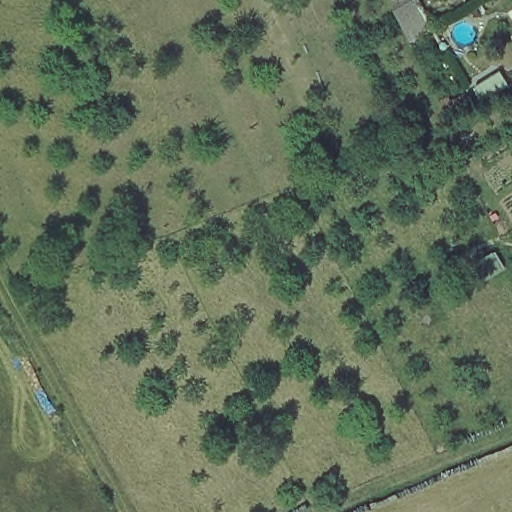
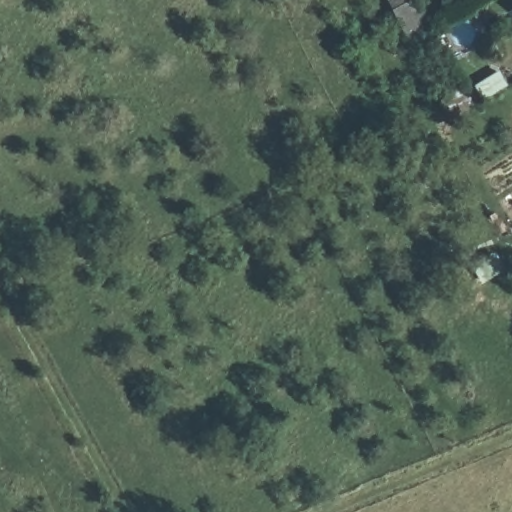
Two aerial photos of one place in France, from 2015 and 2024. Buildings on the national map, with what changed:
unchanged [(396,7),(418,0),(423,0),(434,34),(411,43),(396,7)]

